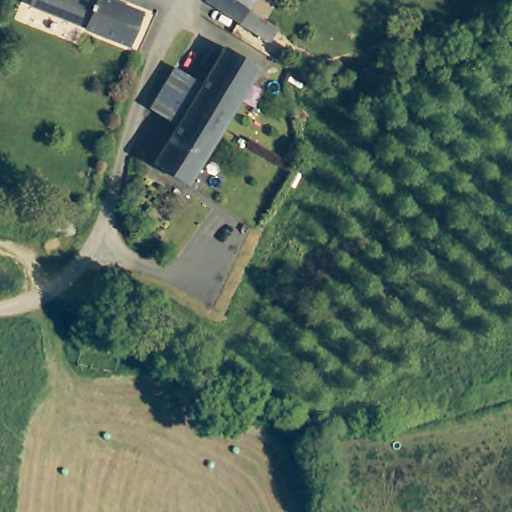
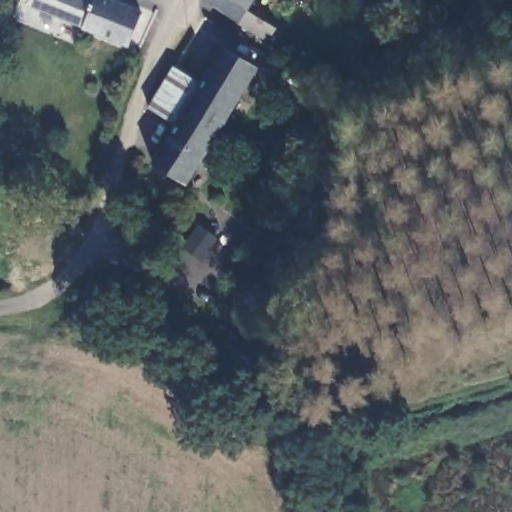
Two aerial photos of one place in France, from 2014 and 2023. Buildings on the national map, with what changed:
unchanged [(129,46),(85,28),(85,27),(29,4),(31,0),(104,0),(139,13),(129,46)]
unchanged [(275,24),(267,36),(259,31),(237,18),(205,0),(249,0),(245,5),(246,6),(275,24)]
unchanged [(227,38),(262,61),(188,176),(153,155),(178,116),(201,80),(227,38)]
unchanged [(201,80),(178,116),(150,100),(172,63),(201,80)]

